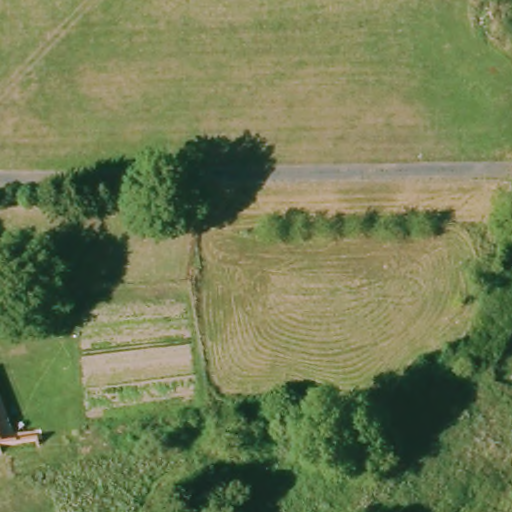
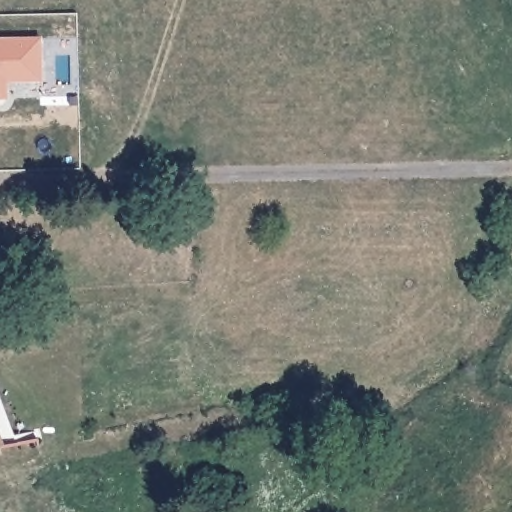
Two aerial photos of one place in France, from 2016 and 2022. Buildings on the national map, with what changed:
new [(8,99),(0,99),(0,38),(41,36),(42,81),(7,81),(8,99)]
unchanged [(53,302),(26,303),(26,286),(53,284),(53,302)]
unchanged [(10,444),(0,446),(0,414),(6,433),(10,444)]

